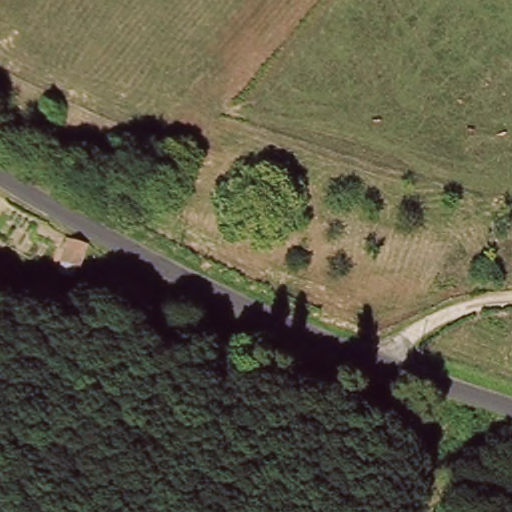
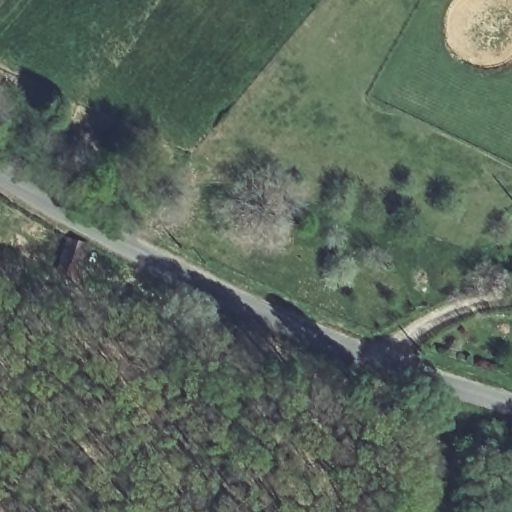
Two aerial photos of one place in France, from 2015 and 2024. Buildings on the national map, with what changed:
unchanged [(59,272),(56,267),(59,254),(65,240),(81,246),(75,264),(72,266),(69,272),(65,275),(59,272)]

